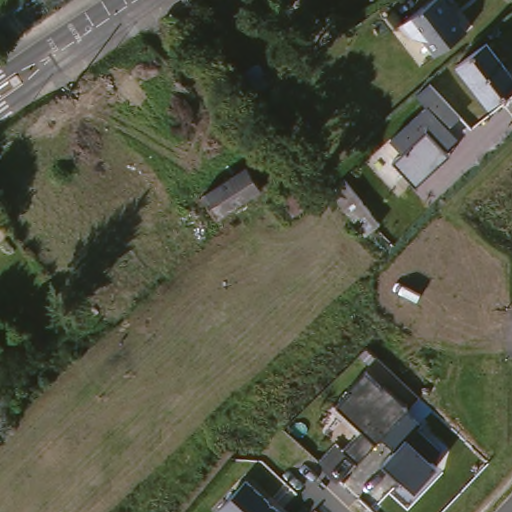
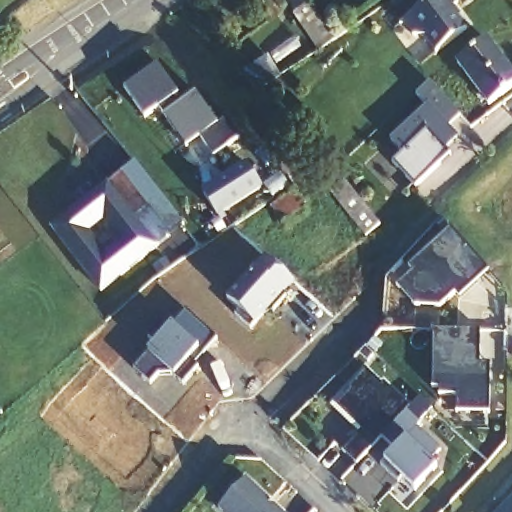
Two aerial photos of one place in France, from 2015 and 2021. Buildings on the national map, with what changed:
unchanged [(459,0),(468,15),(462,18),(473,34),(443,54),(433,39),(420,39),(408,21),(438,0),(459,0)]
unchanged [(305,5),(333,43),(318,51),(290,16),(305,5)]
unchanged [(512,68),(512,97),(497,108),(468,65),(496,45),(512,68)]
new [(200,138),(185,149),(163,115),(159,109),(145,119),(124,89),(158,64),(178,95),(171,100),(176,108),(195,94),(217,126),(226,120),(239,139),(213,158),(200,138)]
unchanged [(390,140),(427,105),(416,95),(429,84),(459,117),(447,126),(457,139),(443,150),(449,155),(416,186),(393,161),(402,153),(390,140)]
unchanged [(267,184),(224,214),(209,194),(252,164),(267,184)]
new [(58,235),(51,227),(105,184),(130,166),(171,228),(101,289),(58,235),(111,192),(58,235)]
unchanged [(365,235),(365,238),(328,191),(341,179),(379,225),(365,235)]
new [(488,273),(459,299),(455,294),(440,308),(415,307),(397,286),(413,272),(410,267),(450,231),(488,273)]
new [(260,253),(292,282),(282,293),(285,297),(272,312),(262,315),(250,329),(235,315),(238,310),(222,297),(260,253)]
new [(154,344),(147,338),(160,324),(166,329),(184,310),(216,339),(202,354),(197,350),(189,359),(199,367),(184,384),(172,374),(159,376),(150,384),(132,369),(154,344)]
new [(480,332),(480,365),(490,365),(488,412),(456,412),(457,395),(439,394),(439,387),(432,387),(434,333),(480,332)]
unchanged [(437,467),(415,491),(383,462),(395,449),(380,436),(357,462),(345,449),(362,431),(336,407),(351,390),(350,389),(365,372),(408,409),(405,412),(425,429),(422,432),(442,452),(430,460),(437,467)]
unchanged [(245,484),(276,512),(220,512),(219,511),(245,484)]

